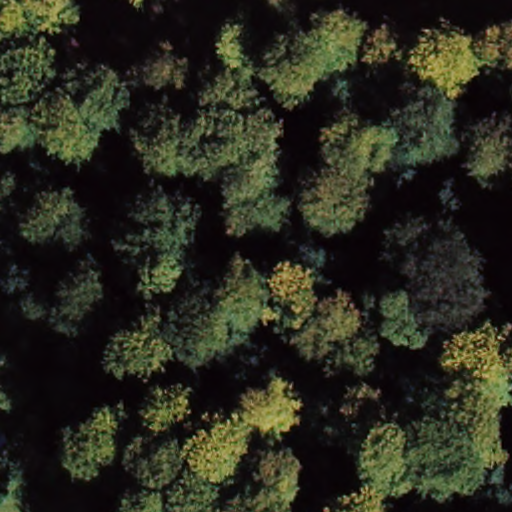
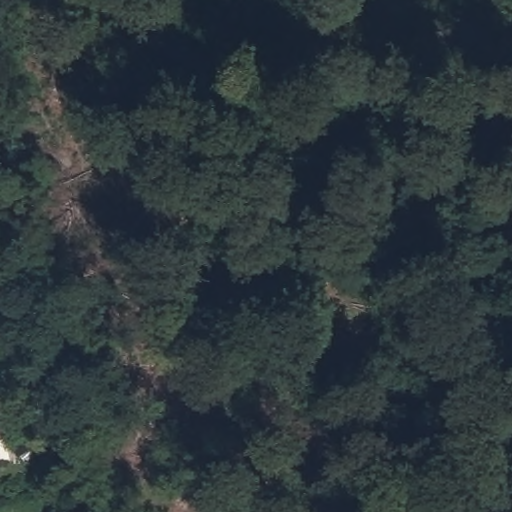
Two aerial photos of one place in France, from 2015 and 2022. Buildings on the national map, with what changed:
unchanged [(0,277),(0,247),(1,247),(10,273),(0,277)]

